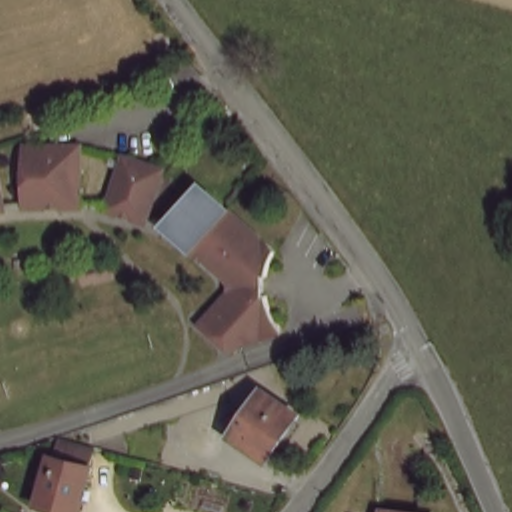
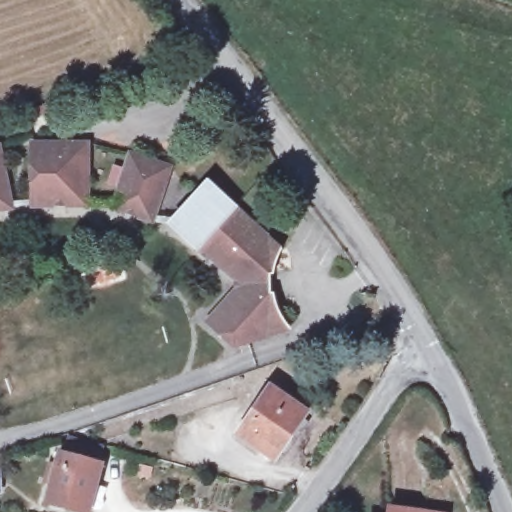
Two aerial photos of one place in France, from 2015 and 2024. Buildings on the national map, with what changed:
unchanged [(31,210),(31,146),(89,146),(89,209),(68,210),(38,210),(31,210)]
unchanged [(108,212),(124,159),(167,173),(150,225),(136,221),(122,217),(108,212)]
unchanged [(0,211),(0,160),(13,209),(0,211)]
unchanged [(286,248),(276,276),(269,278),(271,295),(278,296),(288,334),(231,353),(203,328),(231,295),(238,294),(238,285),(232,284),(178,232),(184,223),(178,216),(193,196),(209,185),(214,191),(221,185),(286,248)]
unchanged [(271,454),(238,433),(254,409),(249,406),(264,387),(301,411),(271,454)]
unchanged [(81,510),(41,501),(53,450),(94,459),(81,510)]
unchanged [(386,509),(406,512),(386,512),(386,509)]

